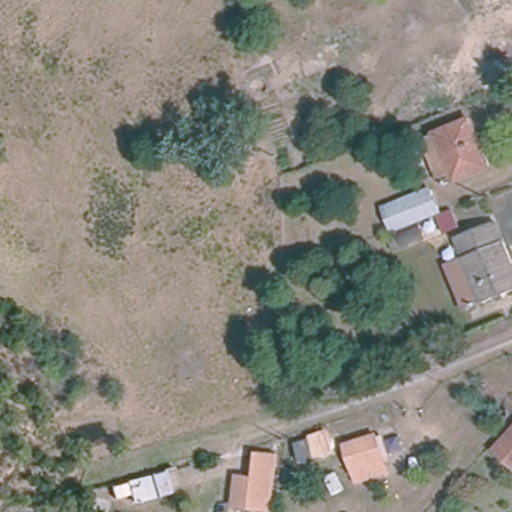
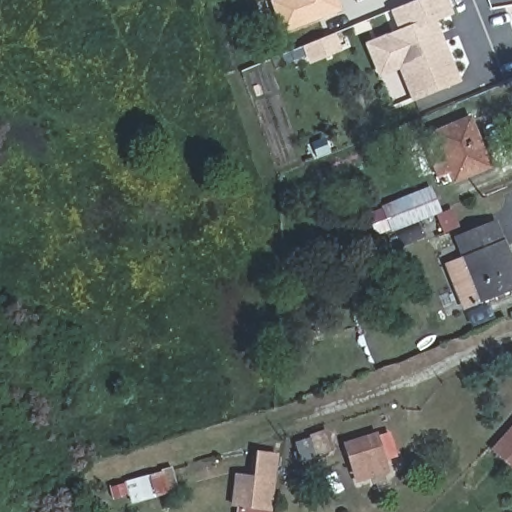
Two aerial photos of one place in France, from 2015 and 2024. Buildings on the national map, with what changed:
new [(279,34),(268,2),(273,0),(339,0),(343,10),(279,34)]
new [(398,31),(391,11),(419,0),(449,0),(455,15),(438,22),(463,81),(413,101),(400,70),(380,76),(367,43),(398,31)]
unchanged [(300,58),(328,50),(333,66),(303,75),(300,58)]
unchanged [(470,117),(490,165),(452,181),(432,133),(470,117)]
unchanged [(384,208),(429,189),(437,210),(392,228),(384,208)]
unchanged [(512,261),(512,290),(466,308),(449,266),(467,259),(460,242),(453,244),(450,238),(496,220),(512,261)]
unchanged [(512,465),(508,469),(484,449),(512,420),(512,465)]
unchanged [(295,442),(325,432),(331,451),(301,461),(295,442)]
unchanged [(375,434),(386,471),(356,480),(345,443),(375,434)]
unchanged [(228,506),(231,473),(249,475),(253,448),(278,452),(271,509),(228,506)]
unchanged [(131,507),(123,479),(173,466),(180,490),(131,507)]

